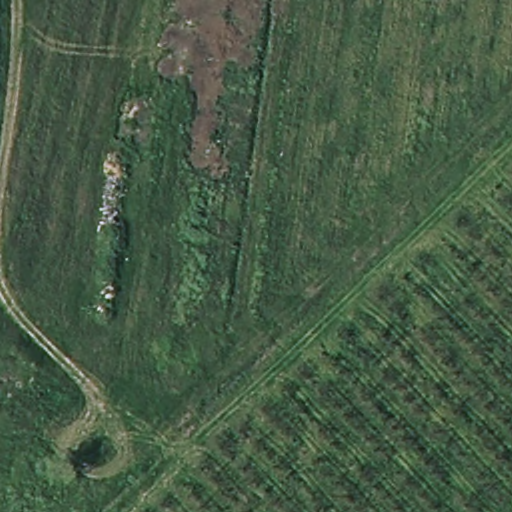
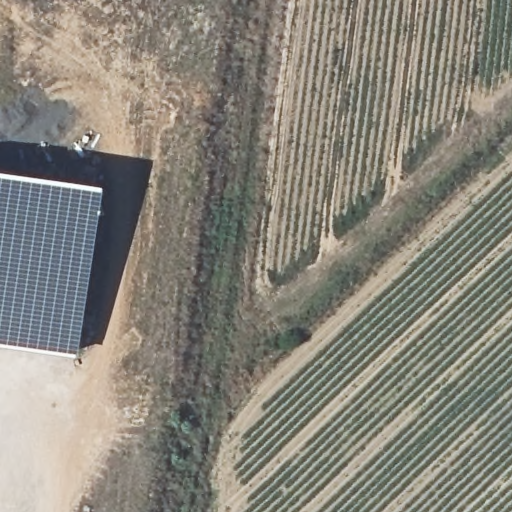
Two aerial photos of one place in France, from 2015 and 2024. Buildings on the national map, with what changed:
new [(0,341),(0,162),(99,175),(74,351),(0,341)]

